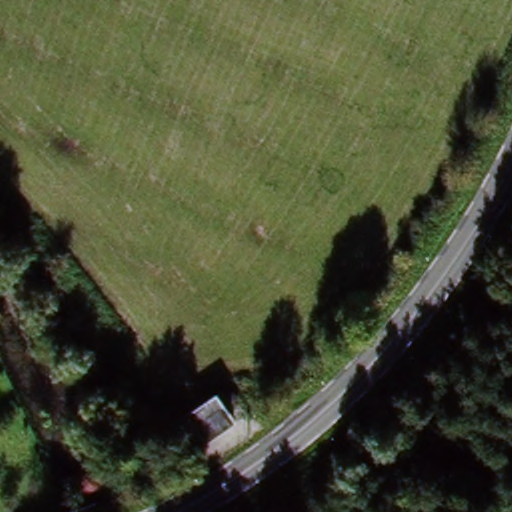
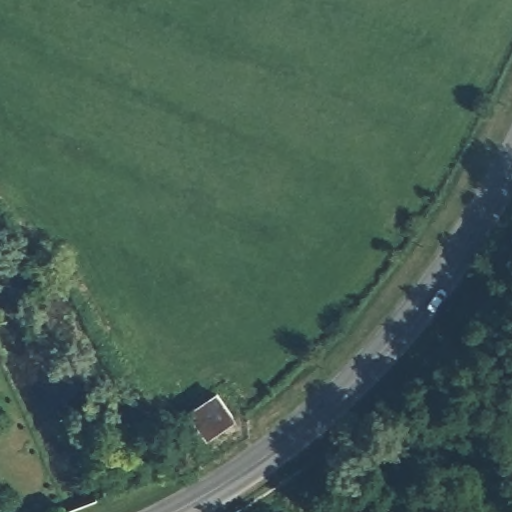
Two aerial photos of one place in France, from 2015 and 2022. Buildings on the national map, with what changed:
unchanged [(222,392),(235,413),(211,430),(198,409),(222,392)]

